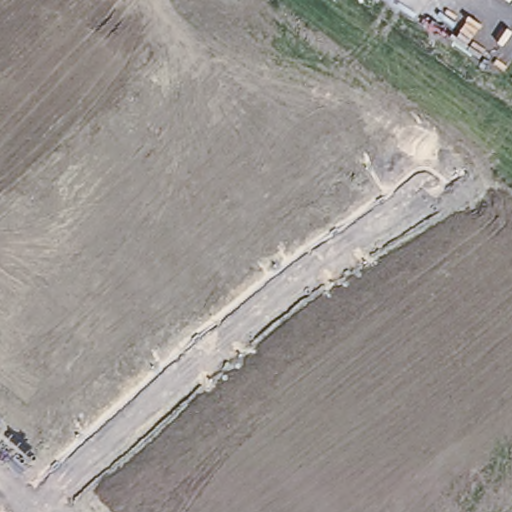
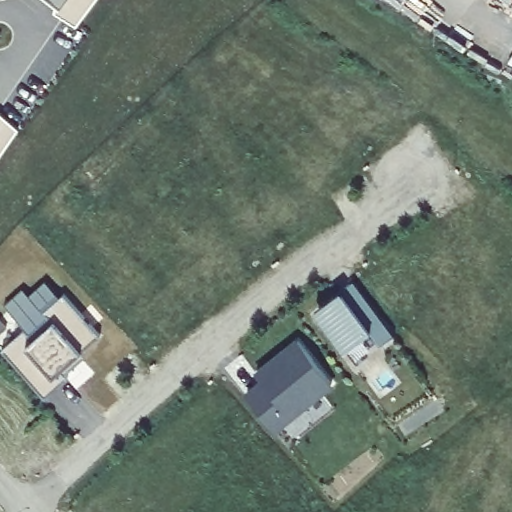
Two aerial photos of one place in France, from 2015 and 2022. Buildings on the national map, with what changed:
new [(76,26),(54,13),(57,0),(96,0),(76,26)]
new [(0,156),(0,113),(18,129),(0,156)]
new [(354,282),(394,336),(356,363),(344,349),(314,310),(354,282)]
new [(24,329),(34,339),(52,322),(43,313),(63,294),(100,335),(61,370),(68,378),(45,398),(1,350),(24,329)]
new [(263,381),(256,374),(299,340),(333,382),(274,429),(246,395),(263,381)]

